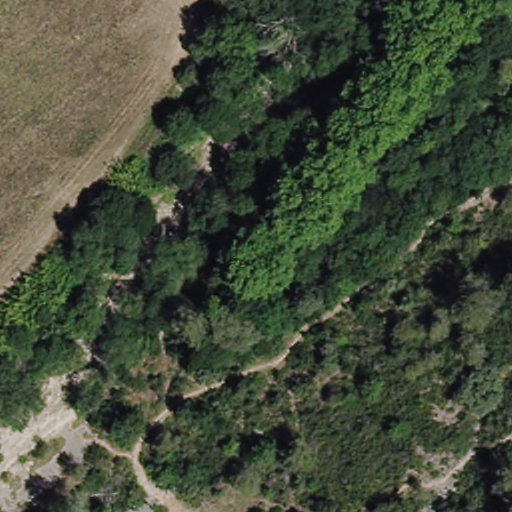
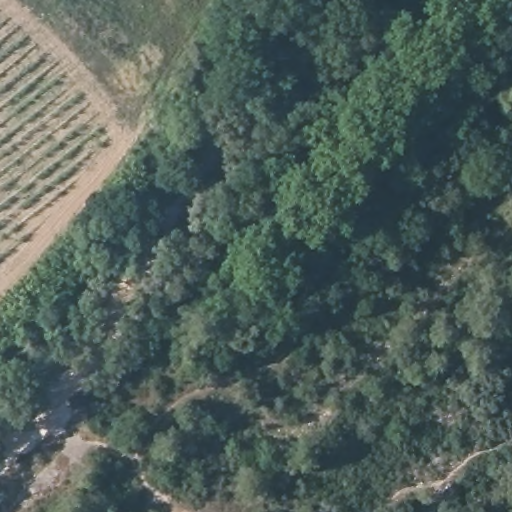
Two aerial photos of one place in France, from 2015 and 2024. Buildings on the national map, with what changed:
unchanged [(132,510),(137,510),(142,512),(129,512),(129,511),(132,510)]

